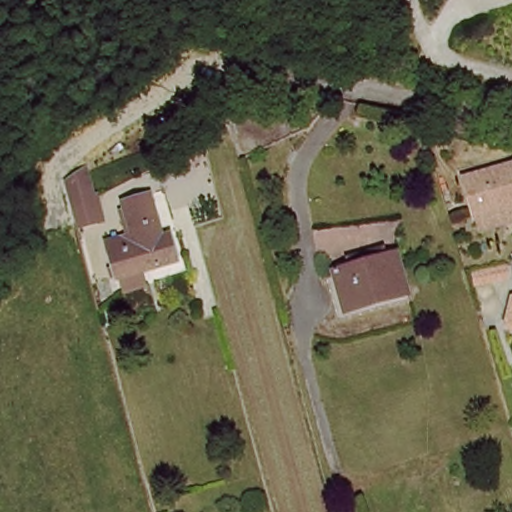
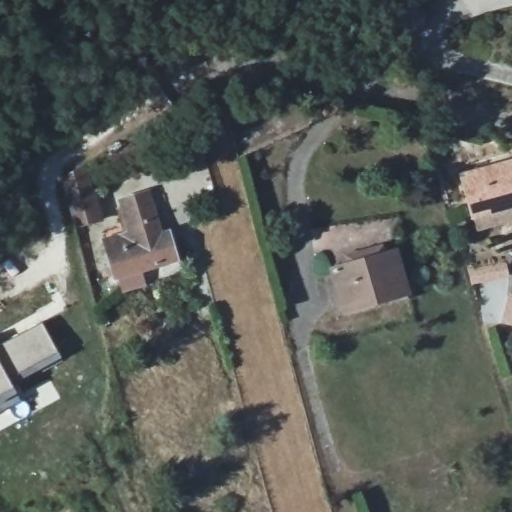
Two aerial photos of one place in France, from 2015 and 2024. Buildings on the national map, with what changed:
unchanged [(462,162),(512,151),(512,196),(473,206),(462,162)]
unchanged [(76,230),(66,180),(95,175),(106,222),(76,230)]
unchanged [(134,232),(116,194),(141,182),(159,220),(168,216),(183,249),(123,277),(109,246),(134,232)]
unchanged [(512,196),(512,216),(477,225),(473,206),(512,196)]
unchanged [(346,302),(331,262),(380,244),(395,239),(410,279),(415,292),(397,299),(351,316),(346,302)]
unchanged [(512,291),(512,316),(505,315),(510,291),(512,291)]
new [(62,359),(11,387),(18,395),(15,397),(21,403),(0,414),(0,344),(43,322),(62,359)]

